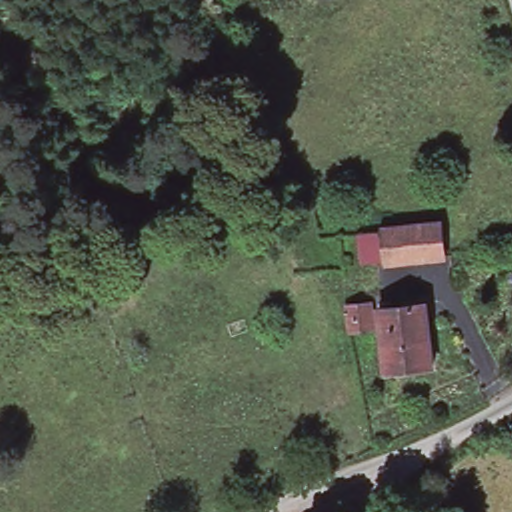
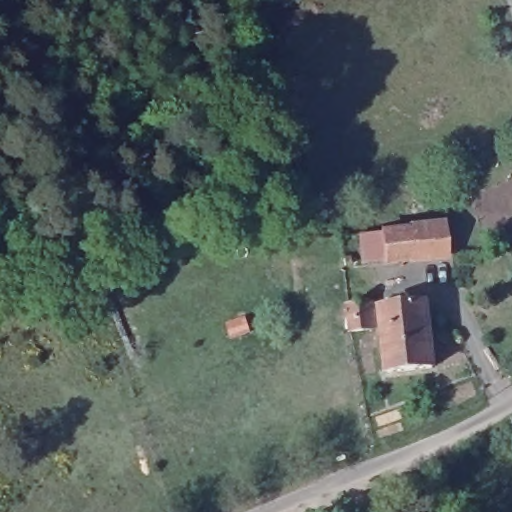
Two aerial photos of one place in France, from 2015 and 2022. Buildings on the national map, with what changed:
unchanged [(440,229),(441,259),(380,262),(380,259),(357,260),(355,231),(379,231),(440,229)]
unchanged [(370,305),(370,332),(350,333),(349,306),(370,305)]
unchanged [(429,309),(429,375),(385,376),(384,310),(429,309)]

